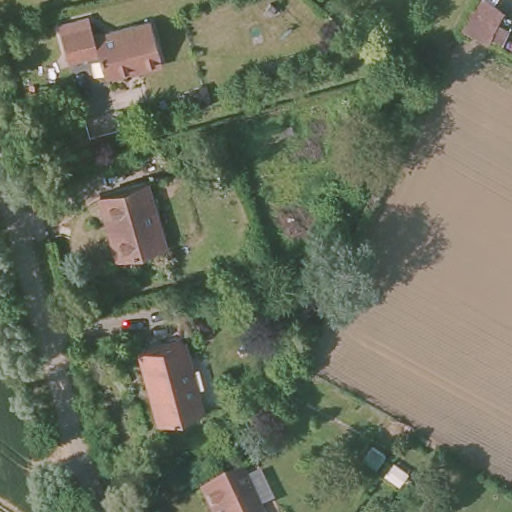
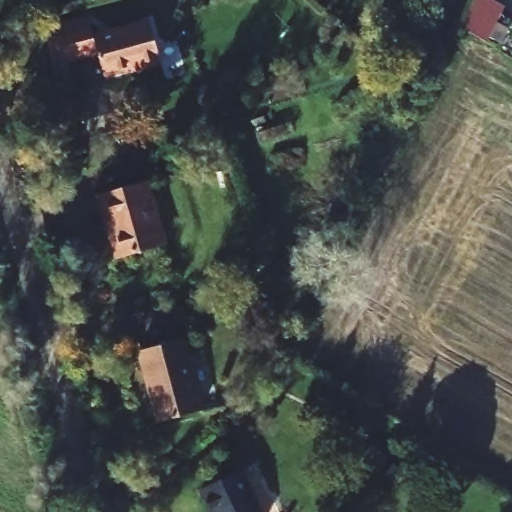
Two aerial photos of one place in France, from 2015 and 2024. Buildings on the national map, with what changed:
unchanged [(487,41),(487,42),(462,26),(472,7),(496,23),(487,41)]
unchanged [(88,41),(144,25),(156,64),(99,80),(93,57),(63,65),(53,30),(83,21),(88,41)]
unchanged [(164,243),(123,254),(111,216),(107,217),(100,195),(146,183),(164,243)]
unchanged [(107,217),(123,254),(118,256),(107,217)]
unchanged [(151,390),(140,350),(183,338),(202,410),(163,420),(159,421),(151,390)]
unchanged [(247,512),(199,512),(191,493),(231,476),(247,512)]

